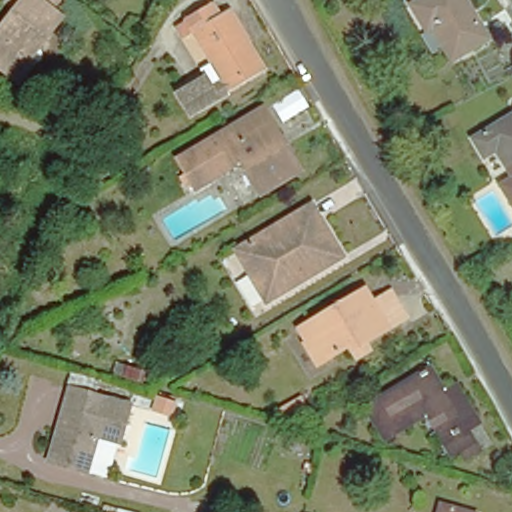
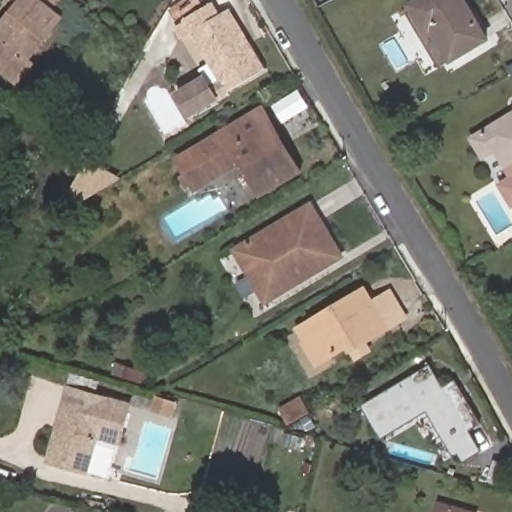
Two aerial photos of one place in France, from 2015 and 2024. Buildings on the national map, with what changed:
unchanged [(13,82),(0,72),(0,22),(10,10),(0,3),(2,0),(53,0),(46,9),(57,18),(32,50),(25,60),(29,63),(13,82)]
unchanged [(452,61),(432,28),(426,31),(409,4),(416,0),(466,0),(488,37),(452,61)]
unchanged [(223,95),(188,35),(179,41),(174,32),(182,27),(180,22),(206,7),(213,21),(217,17),(224,15),(240,44),(258,75),(223,95)]
unchanged [(212,104),(186,120),(174,99),(200,83),(212,104)]
unchanged [(260,192),(244,163),(240,156),(234,160),(218,134),(263,108),(299,170),(260,192)]
unchanged [(496,149),(485,156),(473,137),(512,115),(512,175),(496,149)]
unchanged [(244,163),(196,190),(177,156),(218,134),(234,160),(240,156),(244,163)]
unchanged [(82,171),(93,177),(80,200),(79,201),(69,195),(71,190),(82,171)]
unchanged [(500,184),(512,176),(512,205),(500,184)]
unchanged [(266,301),(235,250),(312,205),(342,256),(294,284),(283,291),(266,301)]
unchanged [(352,358),(347,350),(344,345),(312,364),(300,343),(292,328),(300,325),(360,288),(368,302),(369,304),(376,300),(387,293),(401,317),(390,323),(372,333),(357,343),(362,353),(352,358)]
unchanged [(142,381),(112,372),(115,361),(146,370),(142,381)]
unchanged [(466,428),(479,450),(463,459),(459,451),(452,456),(427,415),(384,438),(363,404),(430,366),(443,390),(456,382),(459,388),(477,421),(466,428)]
unchanged [(97,438),(87,473),(48,461),(70,387),(130,405),(119,443),(97,438)]
unchanged [(175,402),(171,416),(153,410),(157,396),(175,402)]
unchanged [(309,412),(288,423),(280,408),(300,397),(309,412)]
unchanged [(438,512),(441,505),(465,512),(438,512)]

